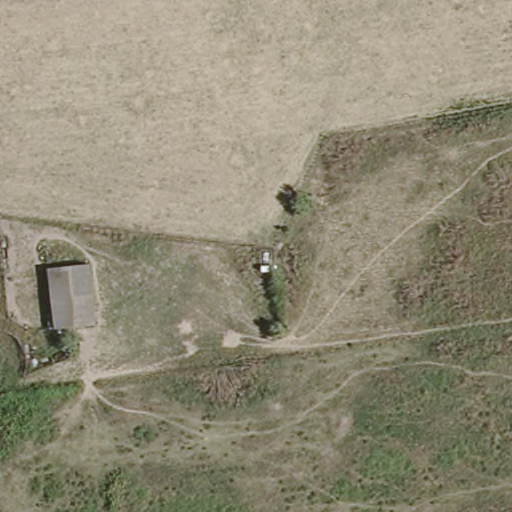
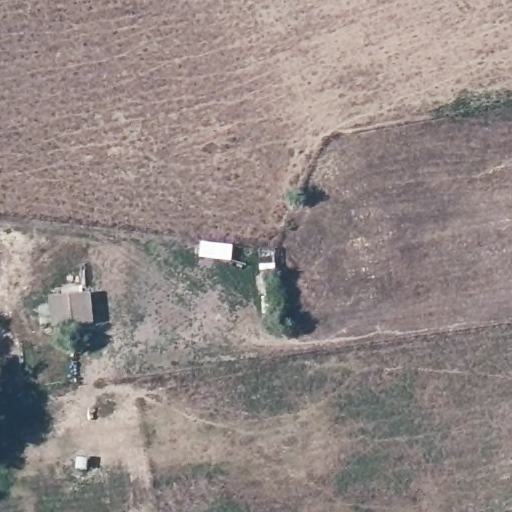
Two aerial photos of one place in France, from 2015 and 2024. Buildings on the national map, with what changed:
unchanged [(48,263),(89,259),(96,320),(55,323),(48,263)]

